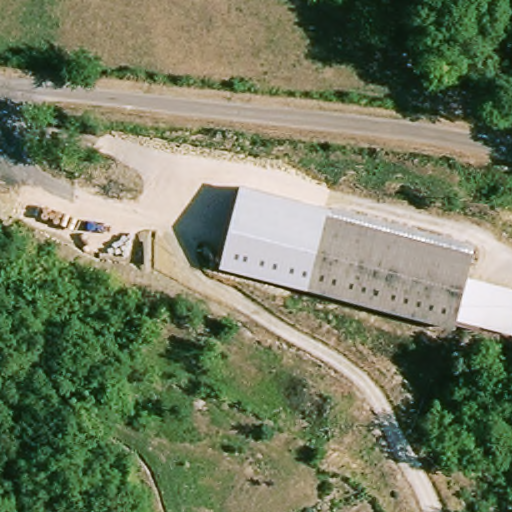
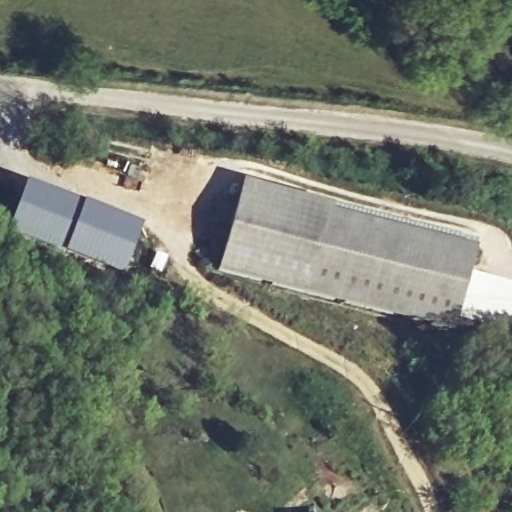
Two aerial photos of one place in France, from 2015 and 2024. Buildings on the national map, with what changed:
new [(143,224),(127,272),(10,230),(26,183),(143,224)]
unchanged [(307,290),(218,268),(239,185),(326,205),(324,214),(307,290)]
unchanged [(324,214),(471,251),(466,279),(457,330),(307,290),(324,214)]
unchanged [(466,279),(512,291),(512,314),(506,344),(457,330),(466,279)]

